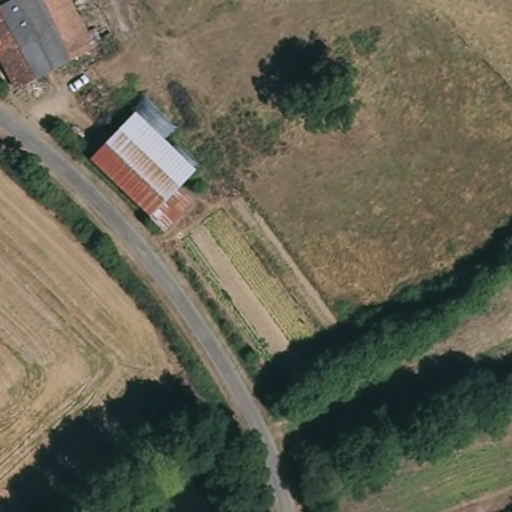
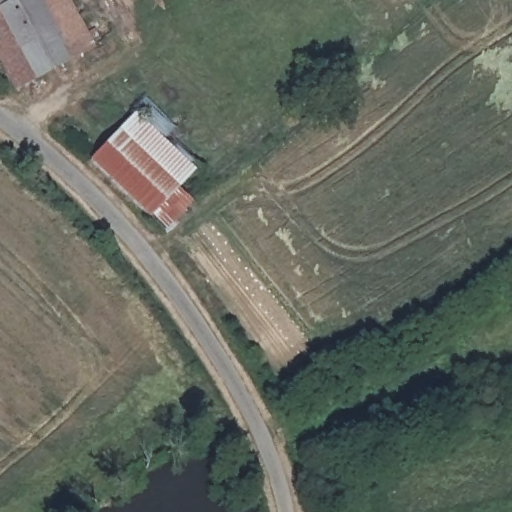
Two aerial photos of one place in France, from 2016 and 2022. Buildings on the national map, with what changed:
unchanged [(22,91),(0,51),(0,0),(71,0),(99,53),(22,91)]
unchanged [(96,156),(123,127),(199,194),(170,224),(96,156)]

